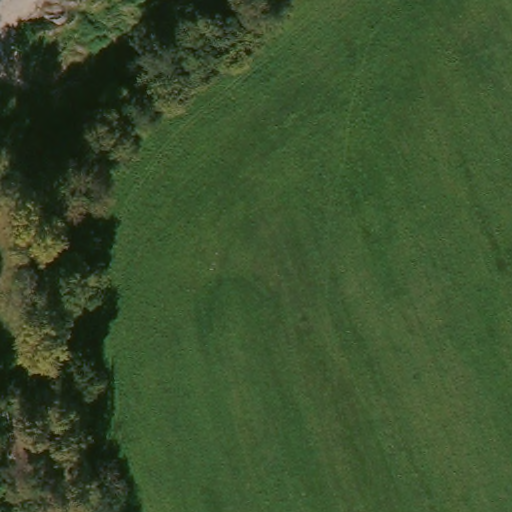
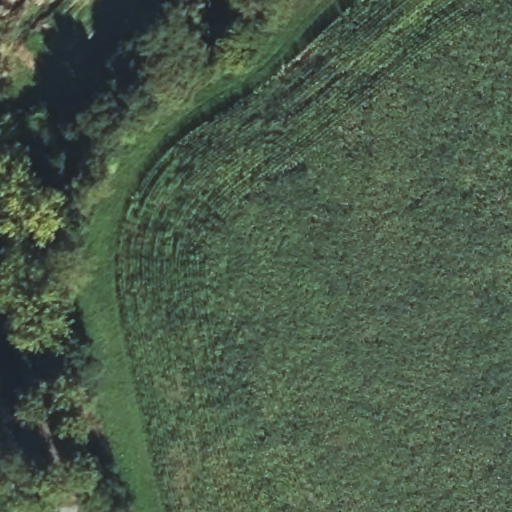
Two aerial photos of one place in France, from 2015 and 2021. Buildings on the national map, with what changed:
[]

